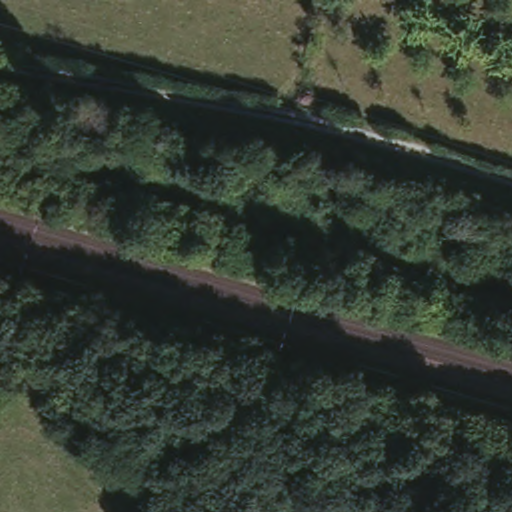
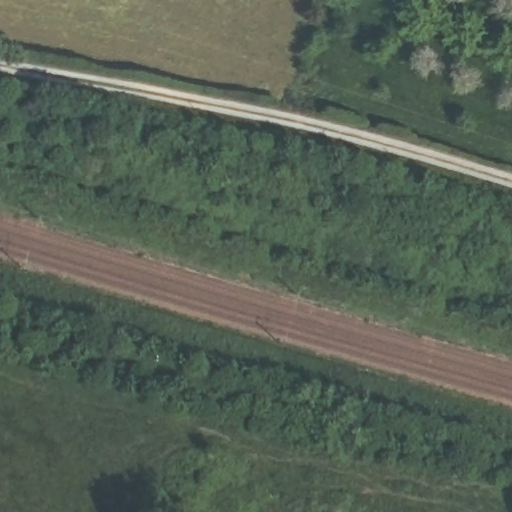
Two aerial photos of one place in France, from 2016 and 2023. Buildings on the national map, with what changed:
[]

